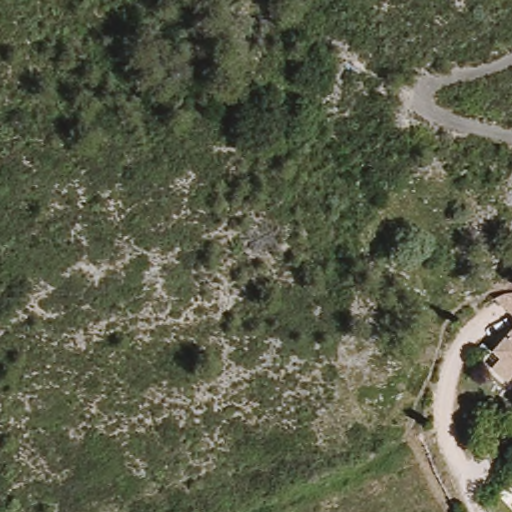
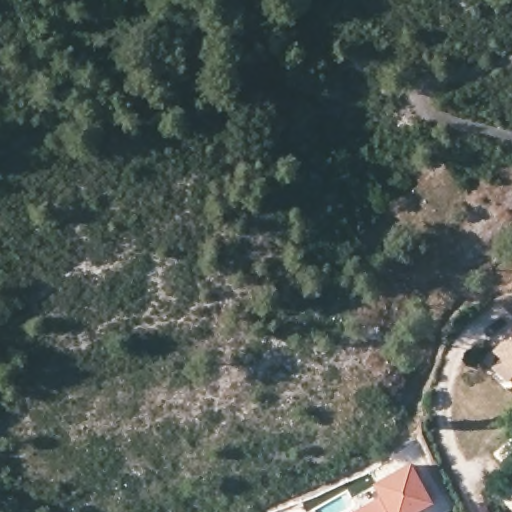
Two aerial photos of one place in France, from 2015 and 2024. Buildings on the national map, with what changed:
unchanged [(512,297),(512,317),(495,301),(512,297)]
unchanged [(494,352),(512,332),(512,366),(494,352)]
new [(372,483),(411,461),(435,502),(418,512),(350,512),(379,495),(372,483)]

